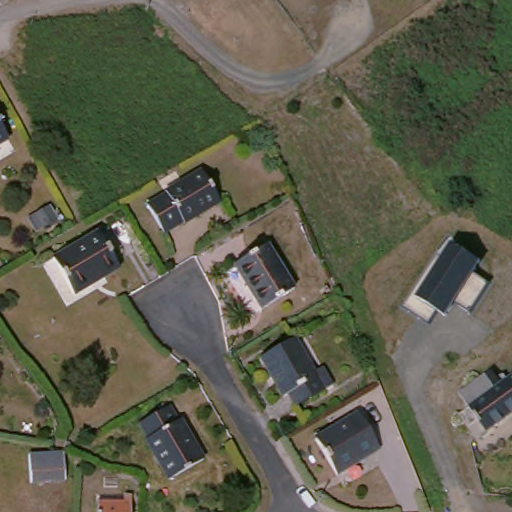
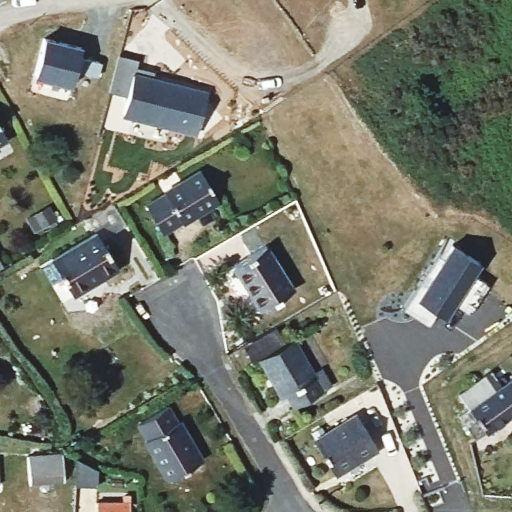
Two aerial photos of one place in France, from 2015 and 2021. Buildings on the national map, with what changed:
unchanged [(0,3),(0,0),(5,0),(0,3)]
new [(46,37),(81,46),(79,54),(101,60),(98,77),(78,72),(73,86),(34,76),(46,37)]
new [(133,73),(208,92),(198,135),(123,115),(133,73)]
unchanged [(0,149),(0,136),(6,145),(0,149)]
unchanged [(181,232),(178,228),(159,240),(144,218),(163,205),(161,202),(196,178),(216,209),(181,232)]
unchanged [(38,232),(32,220),(44,213),(51,225),(38,232)]
unchanged [(66,299),(46,264),(88,238),(109,271),(66,299)]
unchanged [(473,313),(456,303),(447,317),(438,311),(428,325),(403,308),(438,255),(442,258),(451,245),(481,264),(474,275),(488,283),(473,313)]
unchanged [(256,316),(229,273),(261,253),(287,297),(256,316)]
unchanged [(319,389),(311,394),(312,395),(283,413),(274,400),(271,402),(248,363),(282,343),(301,378),(311,372),(319,389)]
unchanged [(466,411),(458,399),(459,398),(488,377),(493,385),(500,380),(503,385),(512,379),(512,417),(475,443),(458,418),(466,411)]
unchanged [(141,448),(143,445),(136,433),(168,415),(174,427),(177,426),(198,468),(164,488),(141,448)]
unchanged [(309,447),(351,422),(371,456),(331,480),(309,447)]
unchanged [(60,488),(25,489),(23,469),(23,463),(58,462),(59,482),(60,488)]
unchanged [(123,512),(92,512),(92,509),(123,510),(123,512)]

